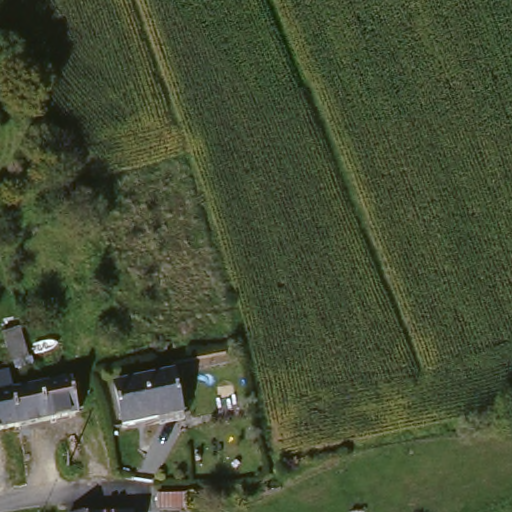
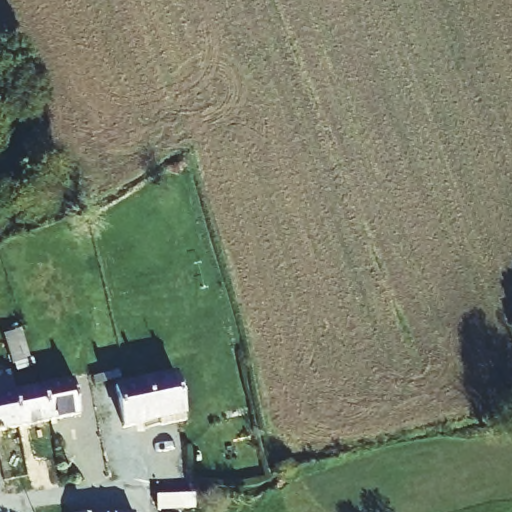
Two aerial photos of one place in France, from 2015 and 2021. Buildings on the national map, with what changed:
unchanged [(179,426),(117,437),(109,393),(171,382),(179,426)]
unchanged [(39,391),(68,385),(74,418),(47,425),(18,432),(0,436),(0,399),(10,397),(39,391)]

